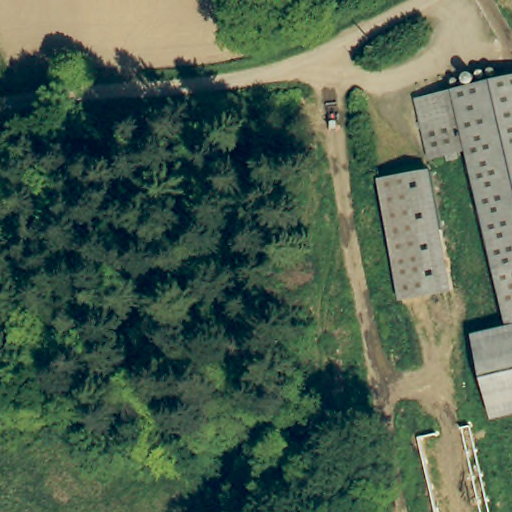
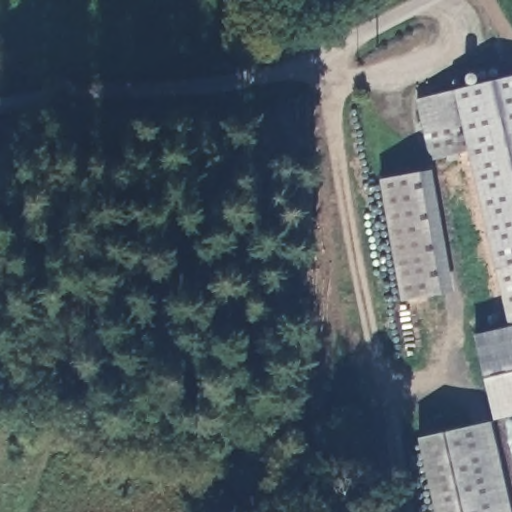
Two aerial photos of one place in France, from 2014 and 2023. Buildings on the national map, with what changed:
unchanged [(507,273),(478,153),(440,160),(425,99),(512,81),(512,272),(507,273)]
unchanged [(455,290),(402,300),(380,179),(433,170),(455,290)]
unchanged [(507,273),(512,272),(512,298),(507,273)]
unchanged [(495,420),(475,333),(512,325),(512,416),(495,420)]
new [(418,438),(492,422),(512,509),(512,512),(435,512),(418,438)]

